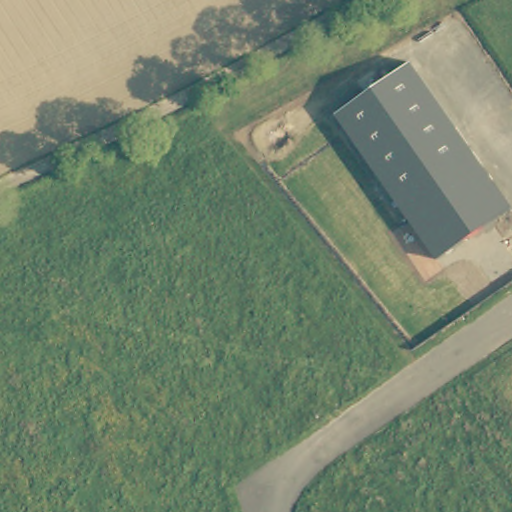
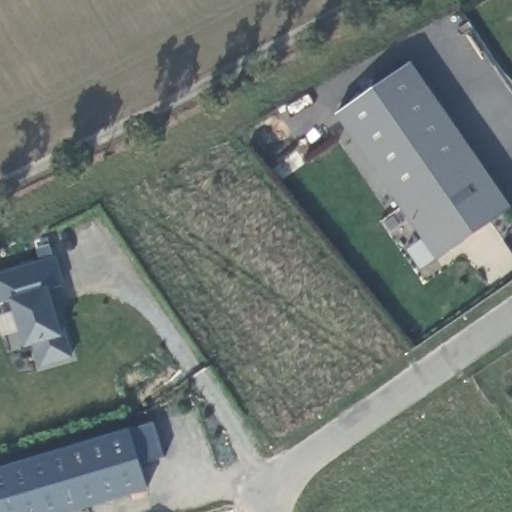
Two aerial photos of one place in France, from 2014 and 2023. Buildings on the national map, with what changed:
unchanged [(335,113),(412,63),(512,205),(512,212),(438,260),(335,113)]
new [(40,367),(34,345),(22,347),(9,301),(0,302),(0,273),(56,255),(65,284),(49,290),(62,335),(66,332),(72,357),(40,367)]
new [(129,428),(130,431),(154,423),(165,457),(142,467),(148,489),(69,512),(0,512),(0,468),(129,428)]

